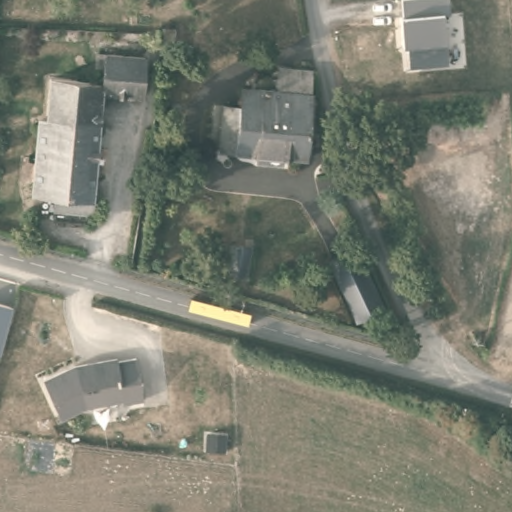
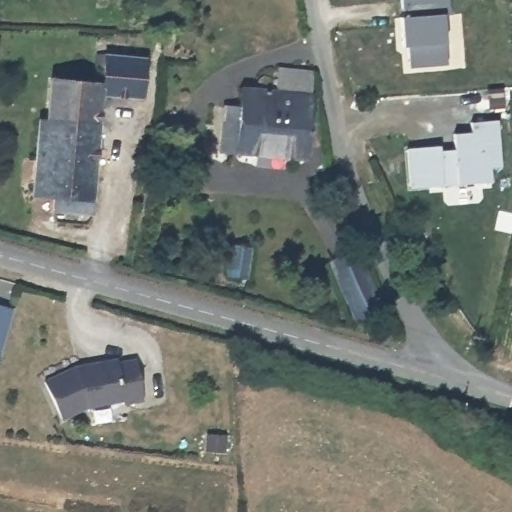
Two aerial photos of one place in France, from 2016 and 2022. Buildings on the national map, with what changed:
unchanged [(450,69),(405,72),(404,52),(400,52),(396,18),(401,18),(400,0),(448,0),(450,69)]
unchanged [(143,53),(139,94),(100,90),(90,207),(53,204),(54,189),(32,187),(37,116),(44,117),(49,75),(101,78),(103,50),(143,53)]
unchanged [(229,146),(231,101),(247,102),(249,73),(263,67),(265,69),(274,66),(282,73),(284,62),(317,64),(316,86),(317,86),(315,121),(312,152),(229,146)]
demolished [(487,115),(488,145),(425,147),(427,118),(487,115)]
new [(404,148),(438,146),(439,150),(453,149),(452,133),(470,132),(469,122),(497,120),(500,166),(490,167),(491,182),(442,186),(408,189),(404,148)]
unchanged [(247,245),(243,275),(222,272),(226,242),(247,245)]
unchanged [(362,244),(387,308),(361,318),(335,254),(362,244)]
unchanged [(1,356),(0,356),(0,306),(13,311),(1,356)]
unchanged [(116,359),(116,362),(134,359),(141,401),(122,404),(121,400),(85,406),(59,417),(42,380),(72,366),(116,359)]

